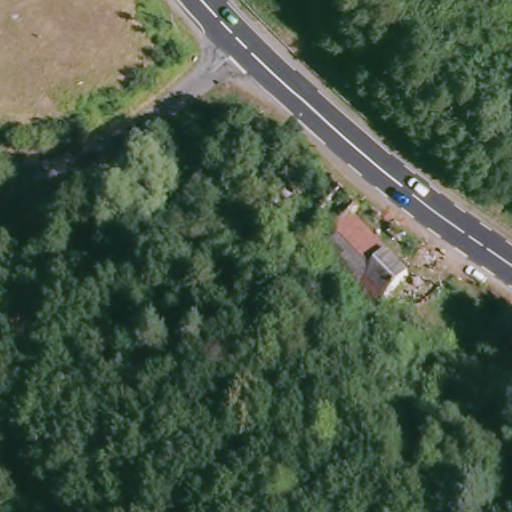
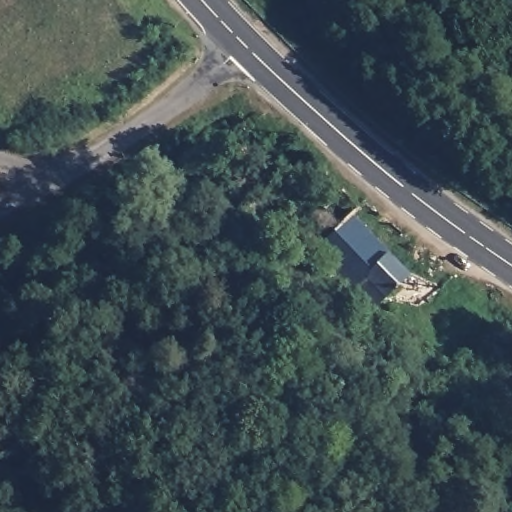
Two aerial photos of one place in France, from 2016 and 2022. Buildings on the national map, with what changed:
unchanged [(350,202),(409,265),(375,298),(315,238),(350,202)]

